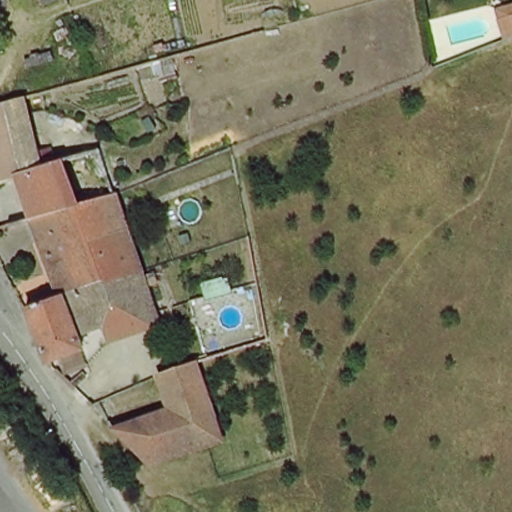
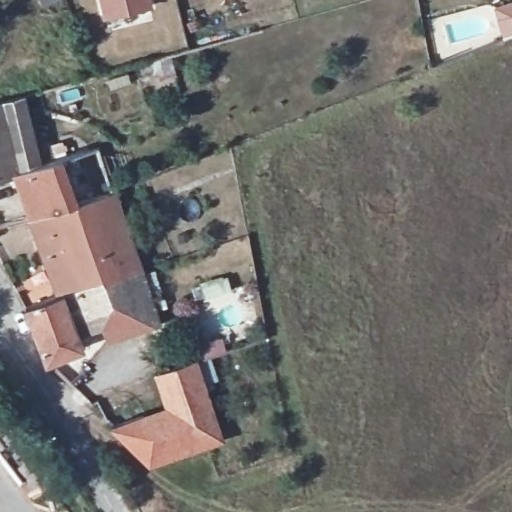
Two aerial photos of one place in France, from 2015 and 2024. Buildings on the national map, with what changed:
new [(155,9),(102,22),(97,0),(152,0),(155,9)]
unchanged [(512,17),(512,37),(499,42),(492,22),(512,17)]
unchanged [(54,148),(58,157),(33,165),(11,172),(0,176),(0,105),(21,98),(39,151),(54,148)]
unchanged [(78,201),(70,203),(27,216),(11,172),(33,165),(58,157),(66,155),(78,201)]
unchanged [(140,268),(57,298),(27,216),(70,203),(78,201),(116,188),(140,268)]
unchanged [(0,219),(3,229),(0,230),(0,219)]
unchanged [(161,327),(108,343),(105,331),(81,340),(82,350),(47,363),(28,308),(57,298),(140,268),(161,327)]
unchanged [(222,440),(198,447),(149,460),(114,428),(172,411),(163,374),(196,361),(222,440)]

